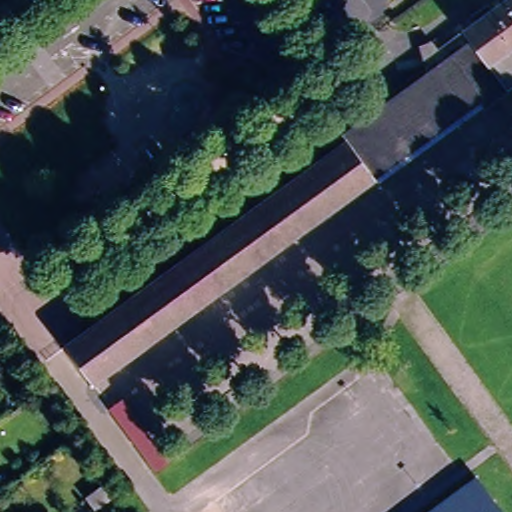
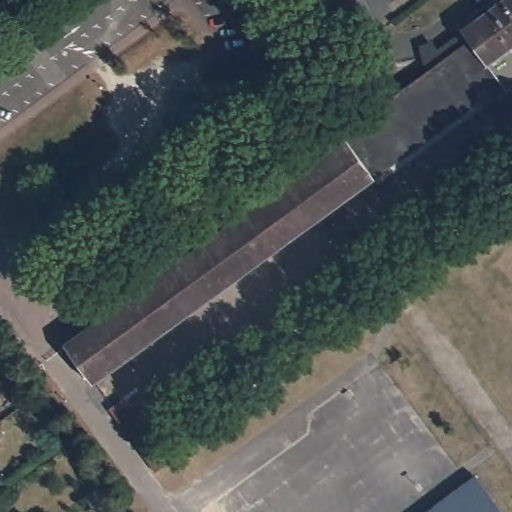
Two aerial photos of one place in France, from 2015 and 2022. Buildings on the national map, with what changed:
unchanged [(469,41),(462,31),(504,0),(512,0),(512,106),(503,93),(490,103),(453,52),(469,41)]
unchanged [(370,113),(382,131),(446,84),(433,67),(453,52),(490,103),(369,193),(363,185),(380,172),(348,129),(370,113)]
unchanged [(433,67),(446,84),(382,131),(370,113),(433,67)]
unchanged [(380,172),(363,185),(94,384),(65,346),(345,141),(340,135),(348,129),(380,172)]
unchanged [(150,468),(137,450),(90,388),(103,379),(150,441),(162,459),(150,468)]
unchanged [(184,448),(170,459),(155,437),(167,427),(184,448)]
unchanged [(498,512),(433,512),(475,481),(498,512)]
unchanged [(95,510),(85,497),(105,483),(114,496),(95,510)]

